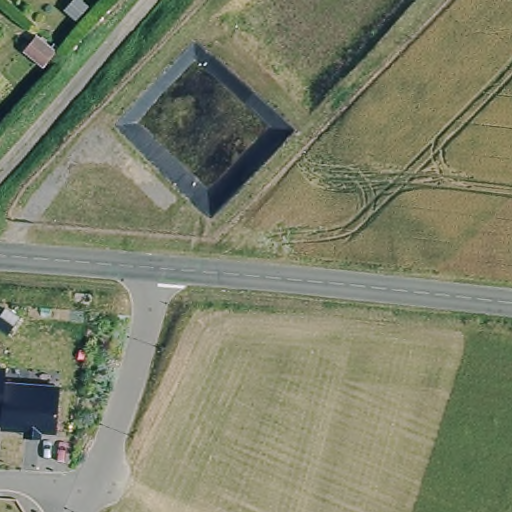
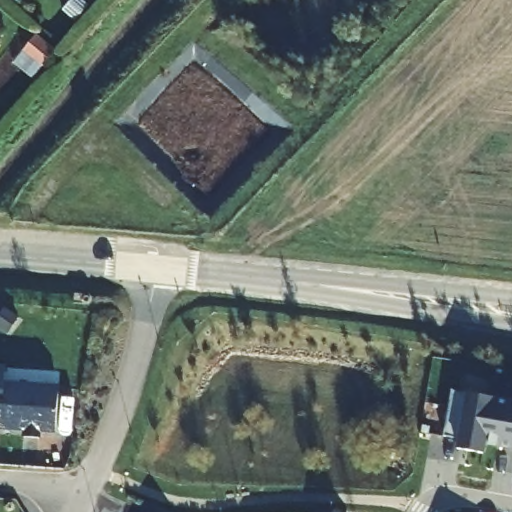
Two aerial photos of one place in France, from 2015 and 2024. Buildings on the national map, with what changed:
unchanged [(45,63),(30,51),(35,43),(50,56),(45,63)]
new [(15,315),(5,330),(0,327),(0,310),(2,306),(15,315)]
unchanged [(4,366),(3,381),(57,385),(55,431),(0,427),(0,366),(4,366)]
new [(481,452),(456,447),(458,438),(442,435),(450,389),(512,399),(512,447),(483,442),(481,452)]

